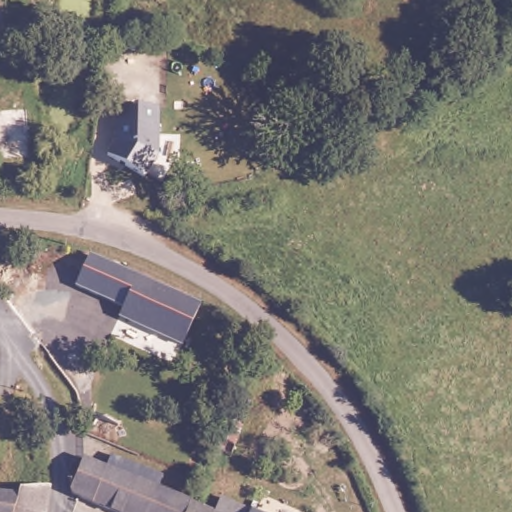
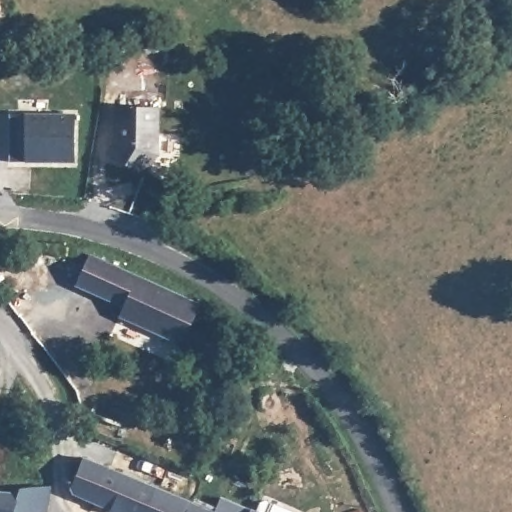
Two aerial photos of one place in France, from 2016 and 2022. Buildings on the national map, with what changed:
unchanged [(160,107),(157,153),(145,173),(107,153),(115,142),(115,106),(160,107)]
new [(25,163),(25,161),(11,161),(10,114),(26,113),(74,114),(75,163),(25,163)]
unchanged [(85,255),(195,305),(182,335),(71,285),(85,255)]
unchanged [(225,417),(242,423),(234,445),(226,443),(222,452),(214,449),(225,417)]
unchanged [(67,494),(65,489),(78,457),(101,467),(106,455),(158,477),(153,489),(185,503),(181,512),(111,512),(67,494)]
unchanged [(45,484),(39,512),(0,512),(0,487),(12,488),(13,483),(45,481),(45,484)]
unchanged [(215,498),(249,512),(209,512),(215,498)]
unchanged [(185,503),(189,504),(189,506),(205,512),(181,512),(185,503)]

